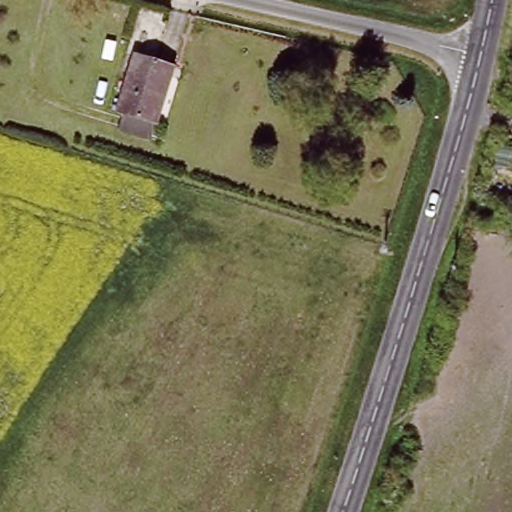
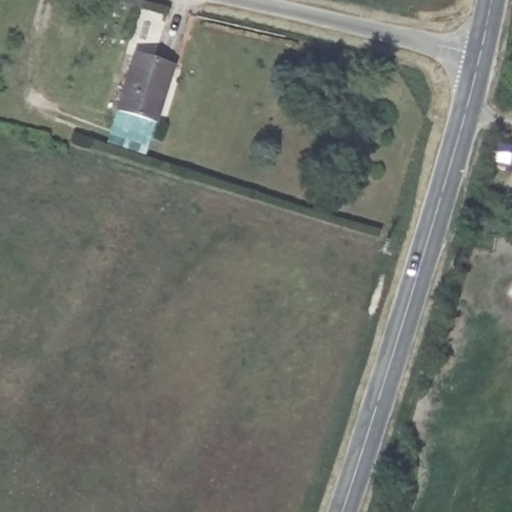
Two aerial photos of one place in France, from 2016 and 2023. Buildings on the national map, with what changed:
unchanged [(138,57),(177,69),(161,122),(121,110),(138,57)]

